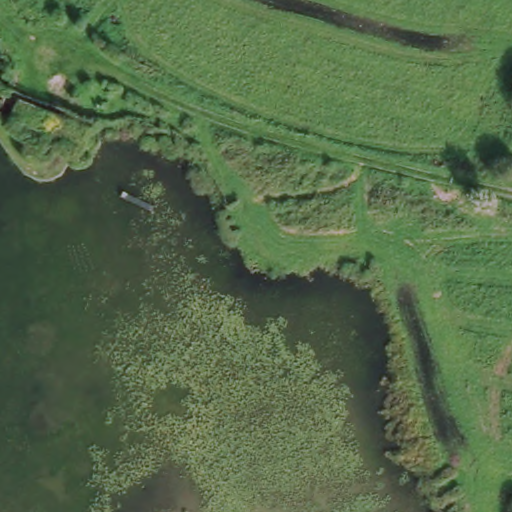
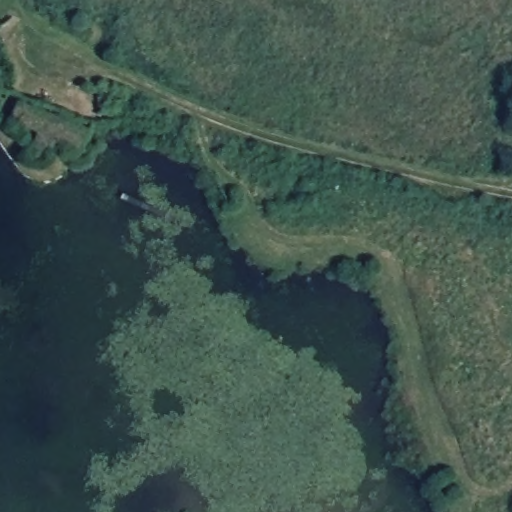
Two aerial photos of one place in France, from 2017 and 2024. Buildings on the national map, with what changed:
unchanged [(54,126),(47,143),(11,125),(19,109),(54,126)]

